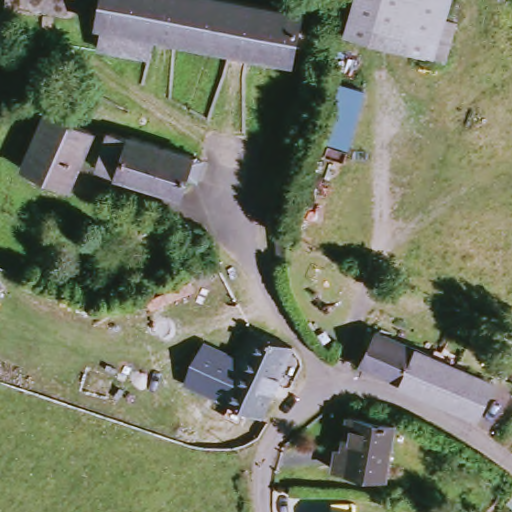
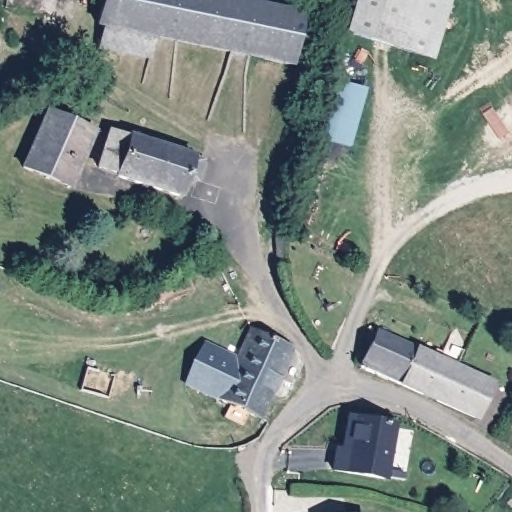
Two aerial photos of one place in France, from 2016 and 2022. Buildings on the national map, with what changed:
unchanged [(297,64),(158,39),(154,58),(102,51),(107,28),(101,26),(106,0),(240,0),(307,14),(297,64)]
unchanged [(365,0),(461,0),(439,60),(355,28),(365,0)]
unchanged [(365,91),(355,150),(329,144),(342,86),(365,91)]
unchanged [(104,135),(72,188),(29,165),(59,110),(104,135)]
unchanged [(130,144),(131,139),(212,164),(205,191),(189,185),(182,203),(101,174),(112,138),(130,144)]
unchanged [(283,380),(267,421),(225,404),(251,332),(293,348),(306,363),(297,385),(283,380)]
unchanged [(384,337),(512,398),(512,411),(502,434),(368,370),(384,337)]
unchanged [(227,398),(185,383),(206,342),(242,357),(227,398)]
unchanged [(404,427),(395,485),(340,478),(344,457),(357,457),(357,421),(404,427)]

